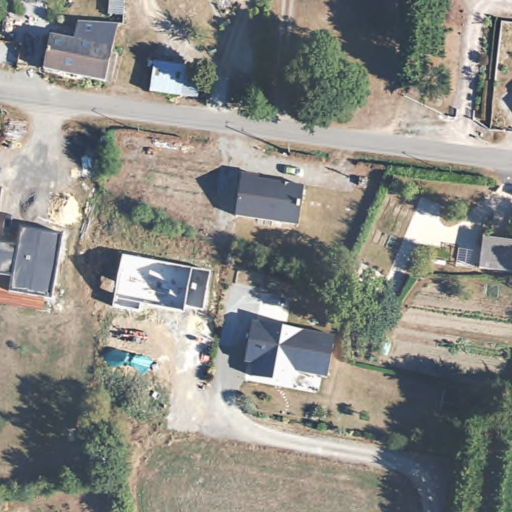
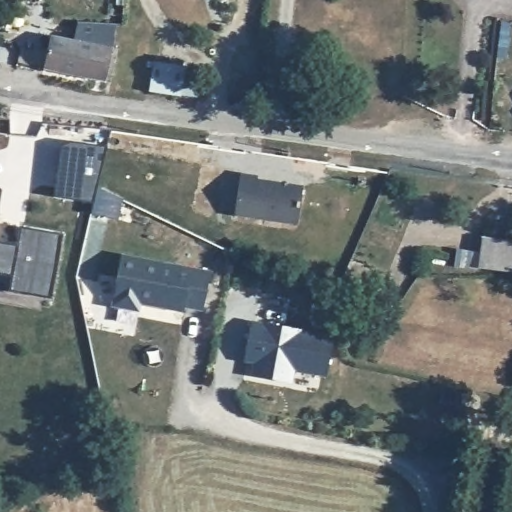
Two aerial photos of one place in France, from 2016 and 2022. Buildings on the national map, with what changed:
unchanged [(110,27),(106,50),(112,51),(104,80),(38,66),(46,32),(68,37),(72,20),(110,27)]
unchanged [(154,63),(185,66),(182,97),(150,94),(154,63)]
unchanged [(354,89),(383,100),(374,125),(344,111),(354,89)]
new [(95,188),(122,200),(117,219),(90,212),(92,202),(53,196),(60,147),(70,142),(105,146),(95,188)]
unchanged [(236,216),(242,180),(301,189),(297,227),(236,216)]
unchanged [(16,247),(20,230),(63,237),(52,300),(6,293),(8,279),(0,277),(0,245),(16,247)]
unchanged [(512,273),(477,268),(482,238),(512,242),(512,273)]
unchanged [(185,306),(184,312),(140,305),(139,312),(111,306),(121,255),(209,272),(202,312),(185,306)]
unchanged [(372,311),(348,296),(358,281),(399,306),(385,327),(369,318),(372,311)]
unchanged [(291,385),(253,378),(256,366),(244,365),(253,322),(331,338),(325,378),(293,373),(291,385)]

